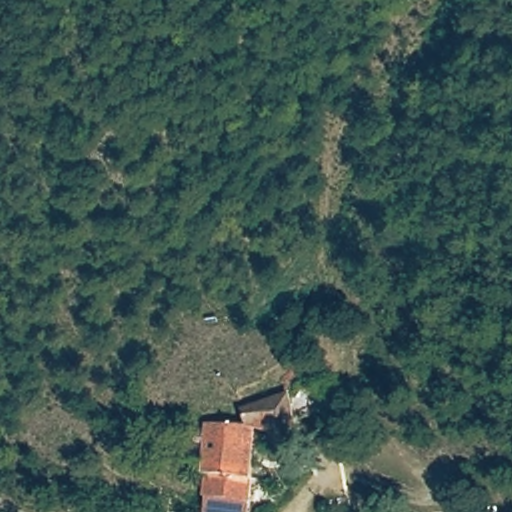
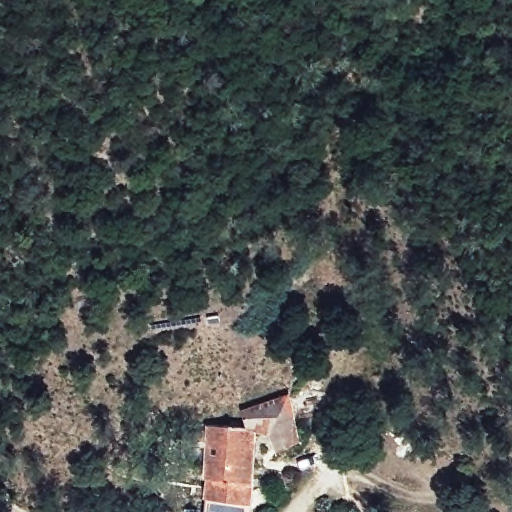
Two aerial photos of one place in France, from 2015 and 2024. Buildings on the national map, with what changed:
unchanged [(207,481),(208,435),(245,433),(243,418),(285,404),(301,444),(272,454),(268,437),(254,438),(251,483),(252,509),(206,505),(207,481)]

